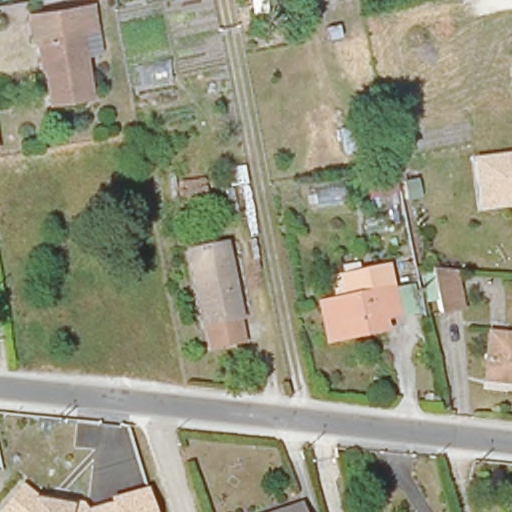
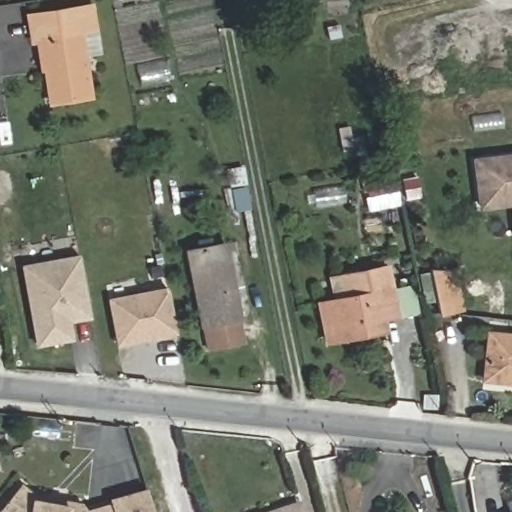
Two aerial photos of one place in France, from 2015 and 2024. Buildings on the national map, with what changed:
unchanged [(97,24),(85,26),(95,86),(60,94),(52,55),(45,56),(41,35),(35,36),(30,12),(44,9),(91,1),(97,24)]
unchanged [(510,206),(479,211),(471,159),(512,154),(512,221),(510,206)]
unchanged [(244,322),(248,351),(218,355),(214,331),(207,332),(189,236),(226,229),(247,322),(244,322)]
new [(74,257),(86,316),(66,321),(70,337),(35,345),(20,267),(74,257)]
unchanged [(379,288),(407,282),(412,306),(385,312),(372,315),(375,328),(320,341),(310,300),(335,295),(331,277),(355,272),(374,268),(379,288)]
unchanged [(453,272),(460,307),(440,312),(430,270),(453,272)]
new [(162,288),(171,332),(114,343),(105,300),(162,288)]
unchanged [(512,335),(512,377),(490,375),(495,333),(512,335)]
unchanged [(483,487),(481,477),(487,476),(490,486),(483,487)]
unchanged [(0,507),(19,482),(34,491),(85,500),(84,507),(107,500),(106,495),(144,486),(153,512),(0,512),(0,507)]
unchanged [(298,502),(302,512),(269,512),(298,502)]

